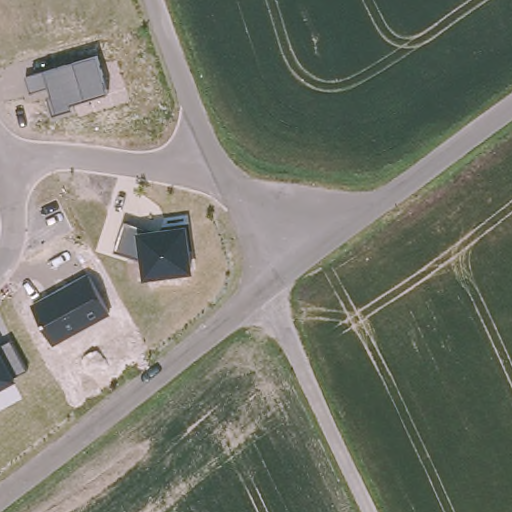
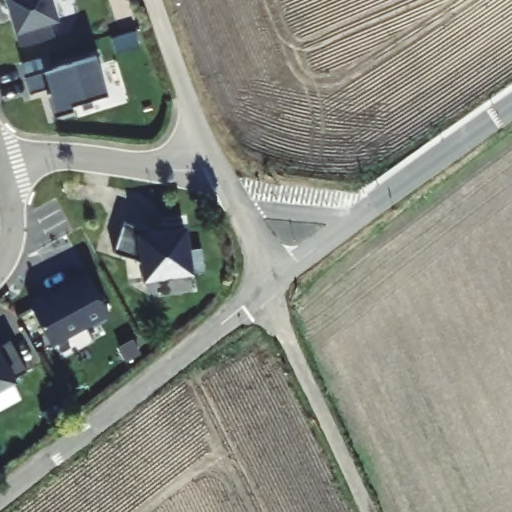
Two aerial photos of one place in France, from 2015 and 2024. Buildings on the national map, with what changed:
new [(51,23),(55,35),(17,45),(12,32),(5,1),(2,2),(1,0),(53,0),(59,21),(51,23)]
unchanged [(97,55),(107,91),(72,102),(75,110),(55,116),(47,93),(50,92),(48,86),(27,92),(23,76),(97,55)]
unchanged [(147,228),(187,223),(192,271),(142,276),(140,259),(114,250),(124,220),(147,228)]
unchanged [(91,273),(112,313),(53,343),(30,298),(91,273)]
unchanged [(12,340),(26,369),(16,375),(18,379),(0,388),(0,345),(1,346),(12,340)]

